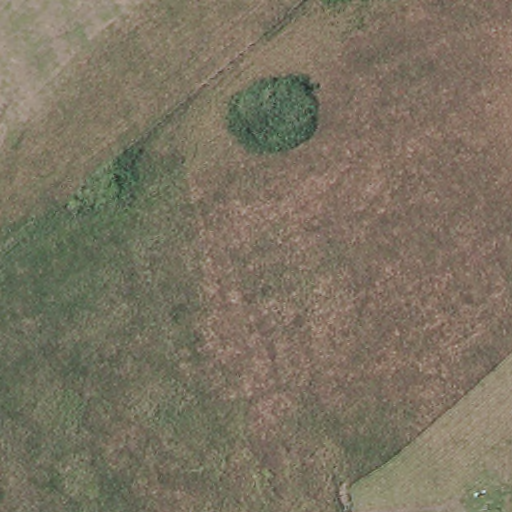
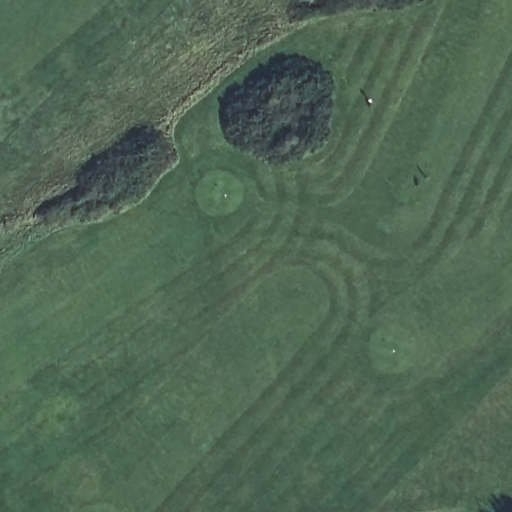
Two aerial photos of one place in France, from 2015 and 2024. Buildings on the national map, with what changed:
[]

